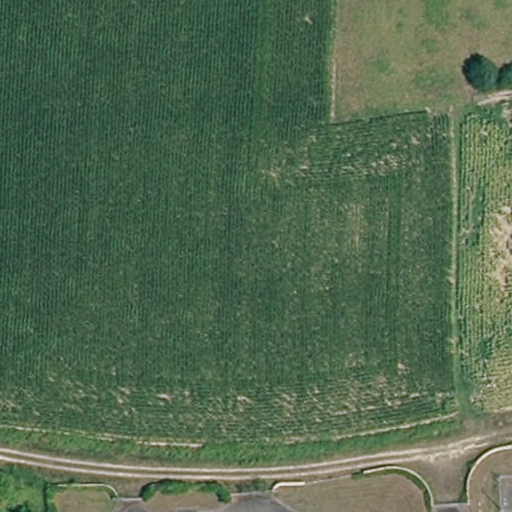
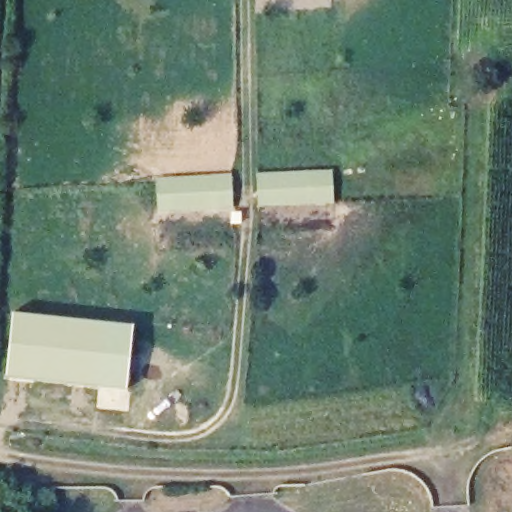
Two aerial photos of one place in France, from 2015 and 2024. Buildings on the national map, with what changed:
new [(360,205),(359,171),(432,166),(434,201),(360,205)]
new [(333,171),(334,205),(259,208),(258,174),(333,171)]
new [(235,210),(159,213),(156,180),(232,174),(235,210)]
new [(7,378),(14,314),(103,325),(96,387),(7,378)]
new [(103,325),(132,328),(125,390),(96,387),(103,325)]

